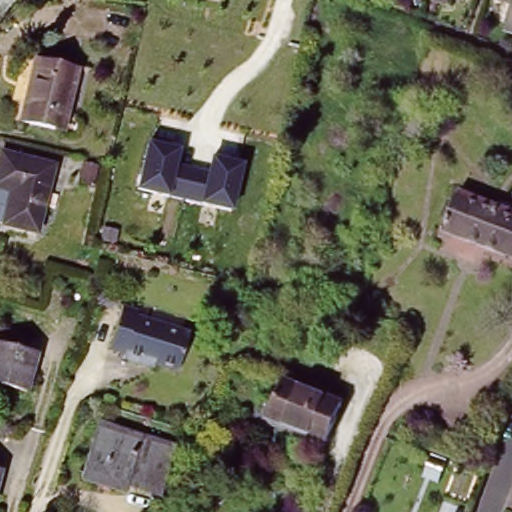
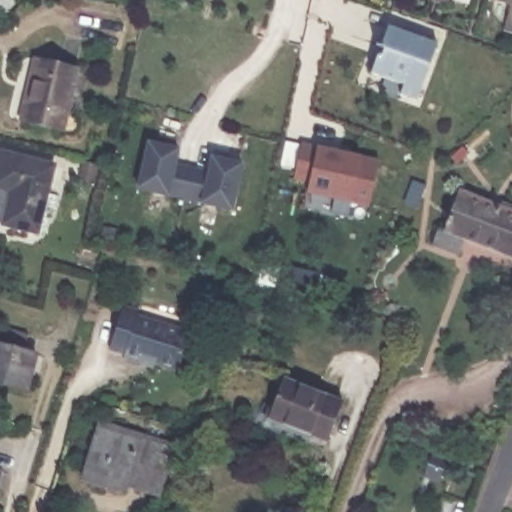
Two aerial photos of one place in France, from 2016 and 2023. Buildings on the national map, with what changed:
unchanged [(428,0),(438,0),(437,3),(428,0)]
unchanged [(438,0),(457,0),(452,14),(436,8),(437,3),(438,0)]
unchanged [(497,35),(505,10),(489,5),(490,0),(512,0),(512,40),(497,35)]
new [(416,99),(399,94),(402,85),(371,72),(388,25),(437,43),(416,99)]
unchanged [(21,123),(28,93),(30,93),(38,63),(78,73),(63,133),(21,123)]
unchanged [(138,189),(148,141),(179,148),(176,164),(206,171),(209,155),(243,163),(233,210),(203,204),(168,195),(138,189)]
new [(367,206),(349,202),(306,192),(309,182),(293,179),(302,142),(317,145),(360,156),(379,159),(367,206)]
unchanged [(0,161),(52,174),(35,240),(0,231),(0,161)]
unchanged [(444,235),(458,198),(512,218),(512,261),(444,235)]
unchanged [(143,362),(142,365),(123,359),(124,356),(110,351),(126,308),(141,314),(139,320),(189,337),(176,374),(143,362)]
unchanged [(0,333),(26,342),(21,358),(34,362),(23,397),(0,390),(0,333)]
unchanged [(270,419),(285,381),(344,405),(329,443),(270,419)]
unchanged [(123,494),(98,484),(99,482),(81,476),(100,423),(158,442),(146,476),(131,471),(123,494)]

